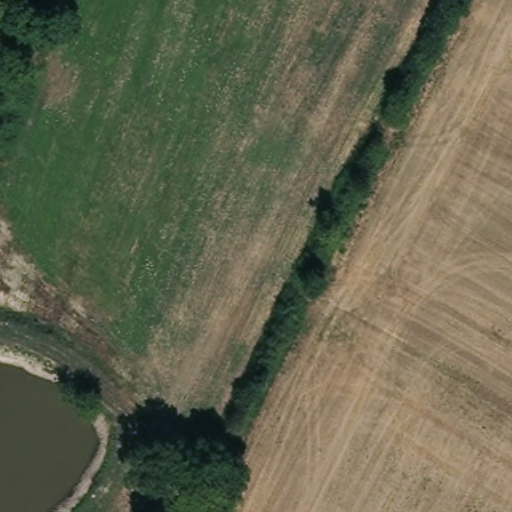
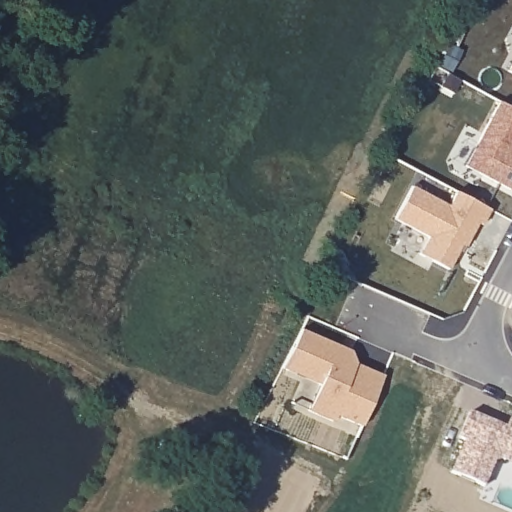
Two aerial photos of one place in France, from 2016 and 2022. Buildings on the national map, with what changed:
new [(509,69),(512,62),(512,70),(509,69)]
new [(512,103),(512,185),(471,164),(504,99),(512,103)]
new [(465,249),(455,267),(426,252),(435,235),(401,217),(417,185),(455,204),(462,190),(496,207),(488,222),(484,220),(472,244),(471,244),(468,250),(465,249)]
new [(320,383),(283,366),(302,329),(349,350),(355,363),(382,375),(362,425),(335,415),(332,421),(309,411),(320,383)]

